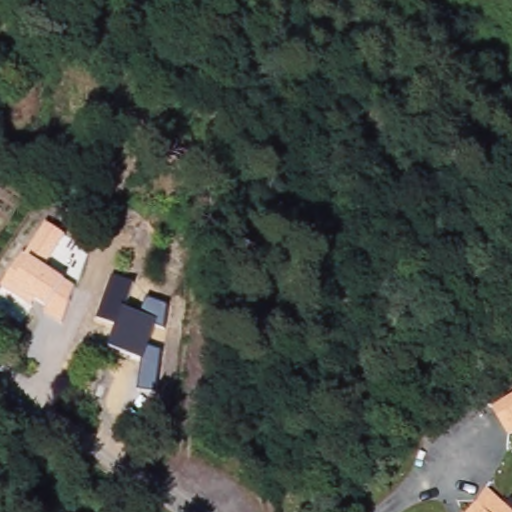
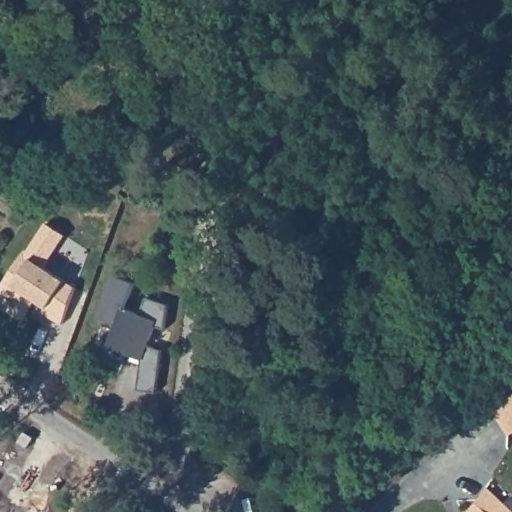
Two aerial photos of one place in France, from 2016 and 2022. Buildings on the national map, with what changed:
unchanged [(51,214),(69,226),(45,266),(65,280),(75,288),(62,325),(42,313),(46,307),(37,300),(33,307),(1,287),(51,214)]
unchanged [(112,275),(134,282),(126,308),(143,315),(147,299),(167,305),(165,330),(156,327),(148,348),(161,351),(156,392),(138,390),(142,361),(110,347),(117,326),(98,318),(112,275)]
unchanged [(503,437),(486,410),(512,396),(512,433),(503,437)]
unchanged [(478,499),(486,486),(512,510),(512,512),(467,512),(478,499)]

